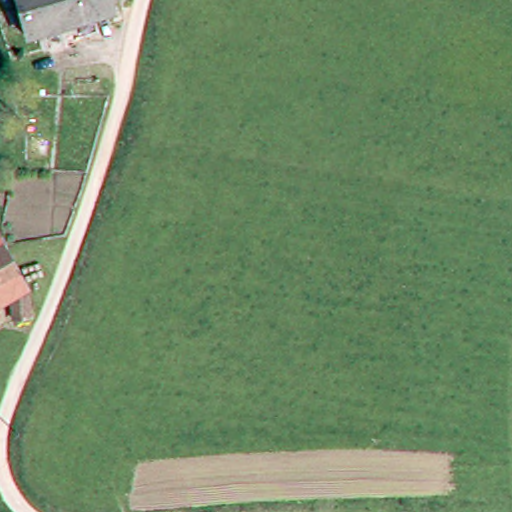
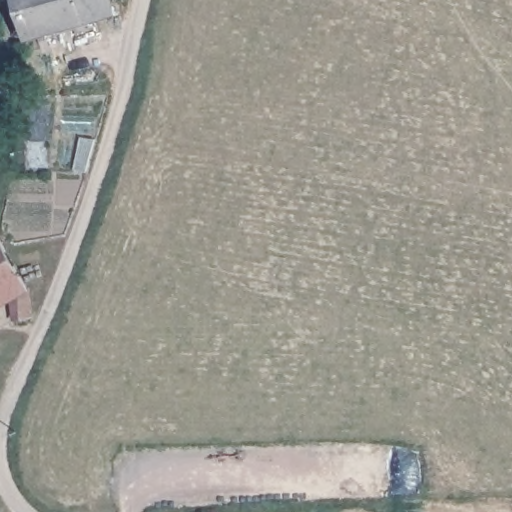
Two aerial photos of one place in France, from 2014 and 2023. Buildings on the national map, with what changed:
unchanged [(30,35),(20,0),(109,0),(112,10),(30,35)]
unchanged [(12,316),(9,292),(0,297),(0,241),(24,284),(29,312),(12,316)]

